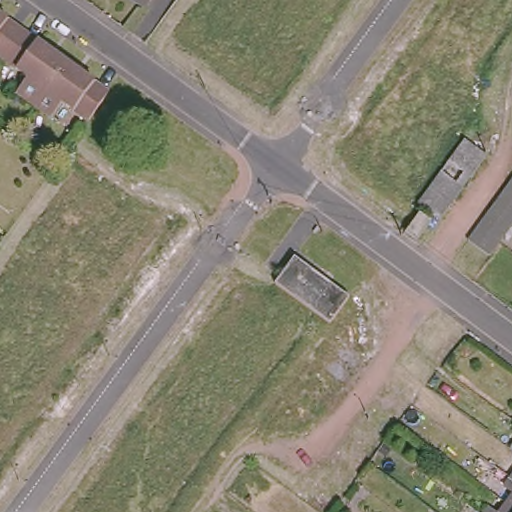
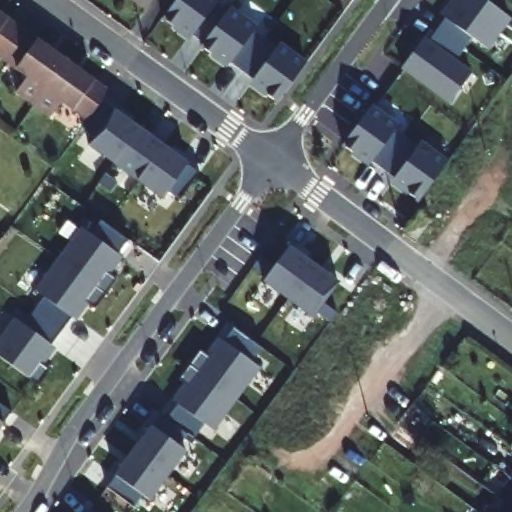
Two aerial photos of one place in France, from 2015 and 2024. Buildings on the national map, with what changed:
unchanged [(138,0),(153,0),(147,7),(138,0)]
new [(220,0),(217,4),(229,12),(206,44),(180,26),(177,29),(164,20),(170,12),(179,0),(220,0)]
new [(489,49),(474,38),(465,49),(439,30),(447,19),(444,16),(456,0),(487,0),(512,19),(489,49)]
unchanged [(0,7),(26,26),(5,54),(0,51),(0,7)]
new [(243,72),(218,54),(216,57),(202,47),(205,44),(206,44),(231,9),(257,28),(255,32),(266,40),(243,72)]
unchanged [(20,89),(31,72),(5,54),(26,26),(70,57),(37,102),(20,89)]
new [(465,49),(457,60),(472,72),(450,103),(405,70),(427,39),(431,41),(439,30),(465,49)]
new [(279,103),(266,94),(269,91),(243,72),(266,40),(277,48),(280,45),(307,64),(279,103)]
unchanged [(70,57),(114,89),(108,96),(92,117),(67,99),(56,116),(37,102),(70,57)]
new [(139,129),(114,164),(90,147),(96,138),(82,129),(102,102),(139,129)]
new [(401,125),(397,129),(409,137),(386,169),(360,150),(358,154),(345,144),(374,105),(401,125)]
new [(114,164),(139,129),(164,147),(139,182),(114,164)]
new [(421,145),(423,142),(450,162),(422,200),(409,191),(411,187),(386,169),(409,137),(421,145)]
demolished [(427,192),(434,184),(442,172),(446,168),(450,162),(456,154),(458,151),(465,142),(487,157),(481,167),(479,170),(472,179),(465,189),(457,200),(451,209),(449,212),(441,222),(418,205),(426,195),(427,192)]
new [(201,173),(181,201),(169,192),(164,200),(139,182),(164,147),(201,173)]
unchanged [(479,229),(485,221),(493,209),(500,200),(507,190),(508,188),(512,183),(512,230),(507,237),(501,245),(499,248),(491,258),(469,242),(477,232),(479,229)]
unchanged [(432,222),(417,244),(406,235),(416,221),(421,214),(432,222)]
new [(107,271),(117,279),(107,293),(59,258),(83,227),(92,234),(103,219),(130,240),(107,271)]
new [(291,245),(316,263),(290,298),(266,280),(291,245)]
new [(263,256),(276,266),(270,273),(257,263),(263,256)]
demolished [(351,296),(348,300),(333,321),(331,323),(276,282),(295,256),(351,296)]
new [(107,293),(96,307),(86,300),(63,330),(36,311),(46,297),(36,290),(59,258),(107,293)]
new [(316,263),(341,282),(315,317),(290,298),(316,263)]
new [(340,312),(333,320),(320,310),(326,302),(340,312)]
new [(40,361),(51,369),(39,385),(0,355),(0,338),(16,317),(26,324),(36,311),(63,330),(40,361)]
new [(202,349),(212,357),(236,326),(263,346),(252,361),(262,367),(239,399),(192,363),(202,349)]
new [(191,386),(181,378),(192,363),(239,399),(216,431),(206,423),(195,437),(168,417),(191,386)]
new [(0,428),(0,401),(12,411),(0,428)]
new [(162,412),(189,433),(180,445),(188,450),(170,475),(135,450),(162,412)]
new [(170,475),(151,500),(144,495),(135,506),(108,486),(135,450),(170,475)]
unchanged [(512,482),(512,486),(511,485),(512,482)]
unchanged [(504,495),(511,485),(512,486),(512,501),(504,495)]
unchanged [(512,504),(512,512),(507,512),(512,504)]
new [(92,507),(99,512),(88,512),(92,507)]

